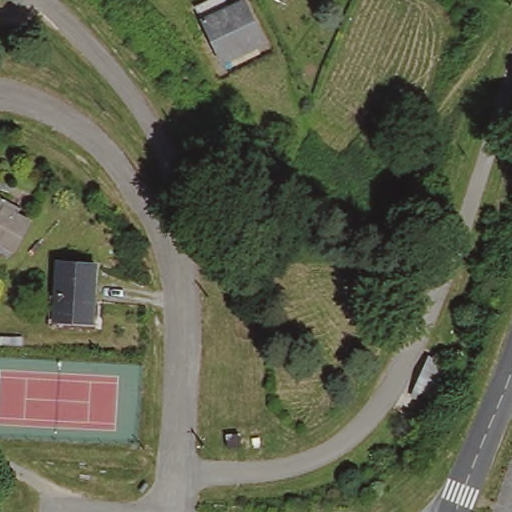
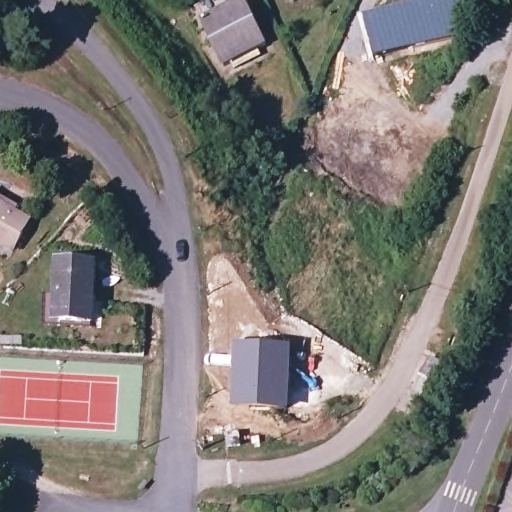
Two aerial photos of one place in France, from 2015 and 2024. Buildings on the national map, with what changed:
new [(424,0),(460,0),(469,30),(440,40),(374,57),(361,17),(424,0)]
unchanged [(268,46),(224,68),(204,21),(249,1),(268,46)]
unchanged [(25,222),(8,249),(0,244),(0,201),(14,210),(13,214),(25,222)]
unchanged [(58,318),(50,317),(54,286),(61,286),(63,254),(101,257),(96,314),(96,321),(58,318)]
new [(235,342),(294,345),(288,409),(230,405),(235,342)]
unchanged [(429,354),(461,366),(445,406),(412,396),(429,354)]

